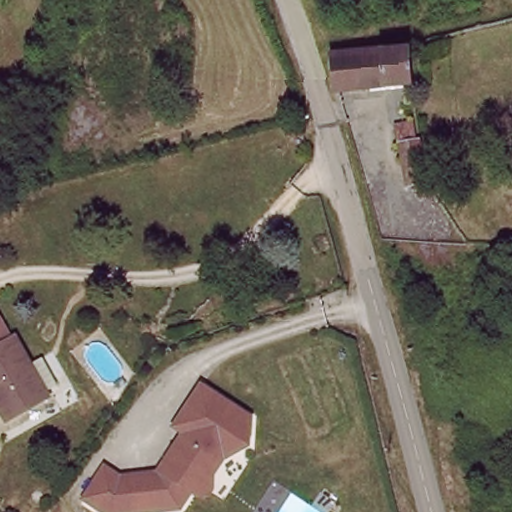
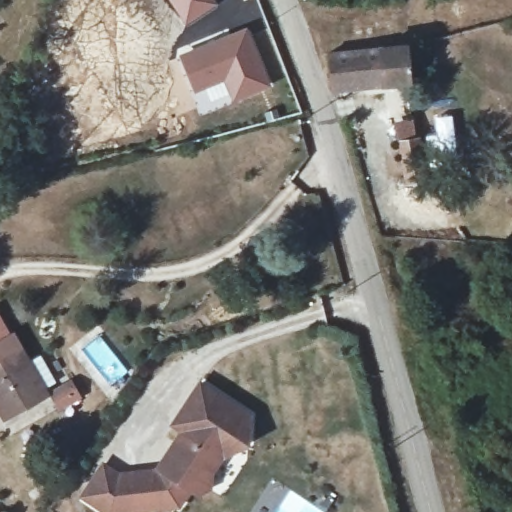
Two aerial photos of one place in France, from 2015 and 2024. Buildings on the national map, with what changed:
new [(219,0),(188,25),(168,0),(218,0),(219,0)]
new [(247,25),(271,84),(232,99),(225,79),(195,91),(180,52),(247,25)]
unchanged [(374,51),(412,47),(416,83),(340,90),(335,54),(374,51)]
unchanged [(407,175),(400,131),(397,115),(417,112),(419,128),(426,171),(407,175)]
unchanged [(0,336),(0,315),(7,332),(0,336)]
unchanged [(54,393),(4,421),(0,415),(0,336),(7,332),(20,325),(54,393)]
unchanged [(195,494),(187,488),(175,505),(105,511),(79,494),(100,463),(115,473),(154,470),(173,443),(182,430),(172,424),(200,385),(248,418),(246,445),(220,458),(209,474),(208,488),(195,494)]

